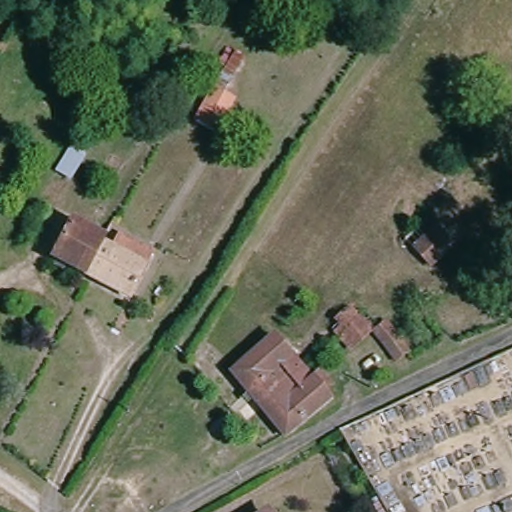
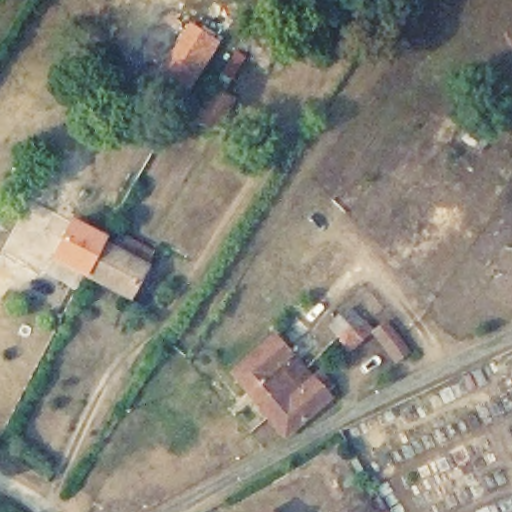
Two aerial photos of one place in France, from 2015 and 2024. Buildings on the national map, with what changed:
new [(189,22),(221,42),(190,91),(158,71),(189,22)]
unchanged [(228,96),(218,112),(225,117),(216,132),(187,116),(193,105),(198,108),(211,87),(228,96)]
unchanged [(105,244),(88,276),(57,258),(76,222),(107,238),(105,244)]
unchanged [(122,234),(155,252),(130,297),(88,276),(105,244),(114,248),(122,234)]
unchanged [(331,328),(337,323),(332,317),(346,302),(370,328),(349,348),(331,328)]
unchanged [(406,351),(394,361),(370,328),(382,320),(406,351)]
unchanged [(230,373),(272,337),(310,381),(317,373),(330,387),(322,393),(328,400),(315,412),(283,437),(282,437),(230,373)]
demolished [(67,403),(39,396),(45,374),(72,382),(67,403)]

